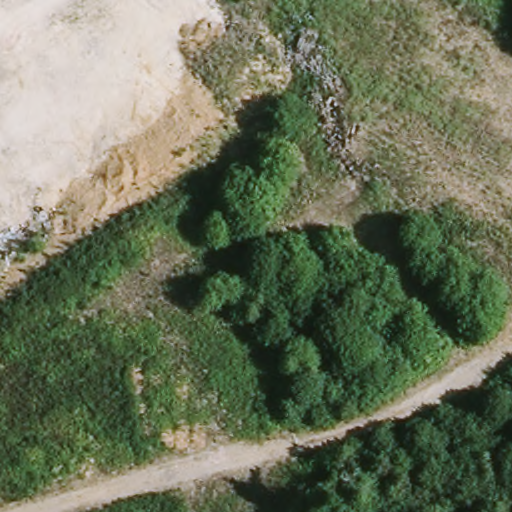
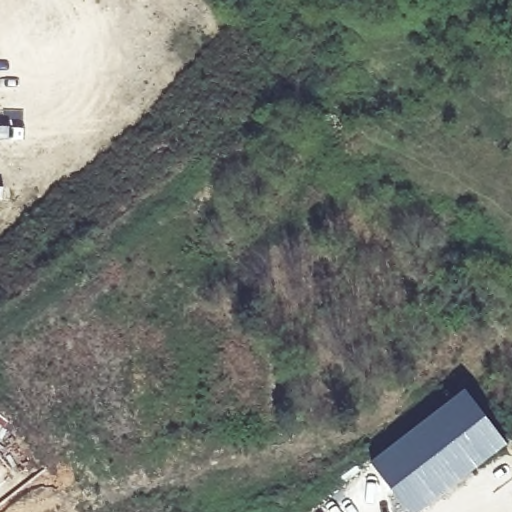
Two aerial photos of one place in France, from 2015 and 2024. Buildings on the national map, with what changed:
new [(506,449),(425,512),(403,512),(370,468),(465,396),(506,449)]

